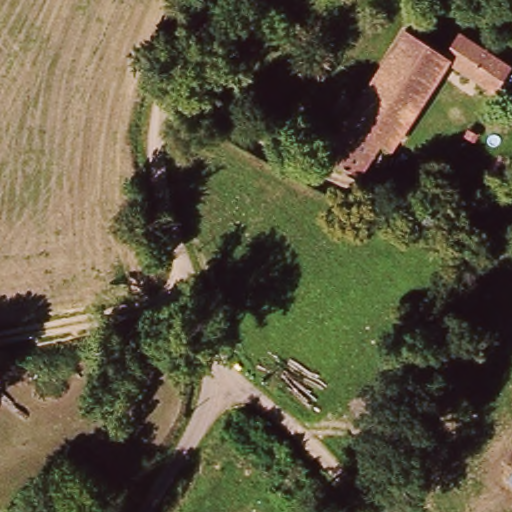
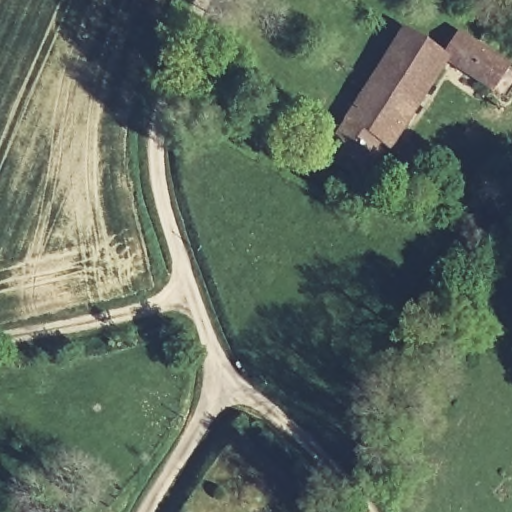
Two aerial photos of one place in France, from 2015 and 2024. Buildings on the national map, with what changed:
unchanged [(449,59),(463,34),(511,64),(497,88),(449,59)]
unchanged [(377,96),(412,37),(449,59),(395,152),(386,148),(366,181),(337,165),(377,96)]

